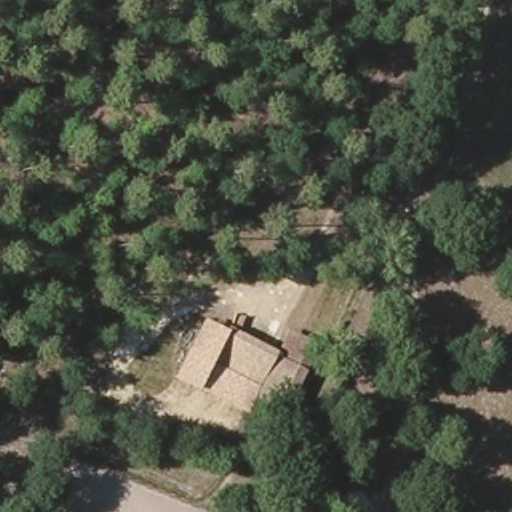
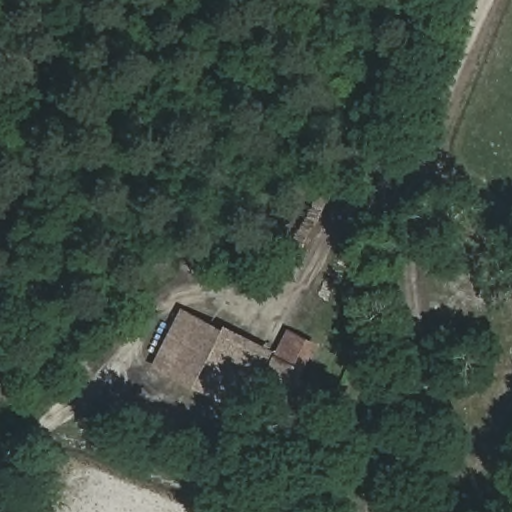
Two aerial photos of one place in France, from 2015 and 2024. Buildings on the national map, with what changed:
unchanged [(226,331),(227,327),(276,351),(287,331),(318,346),(277,429),(172,378),(202,318),(226,331)]

